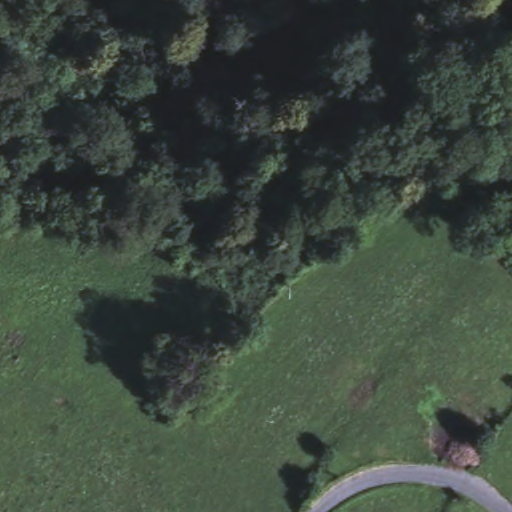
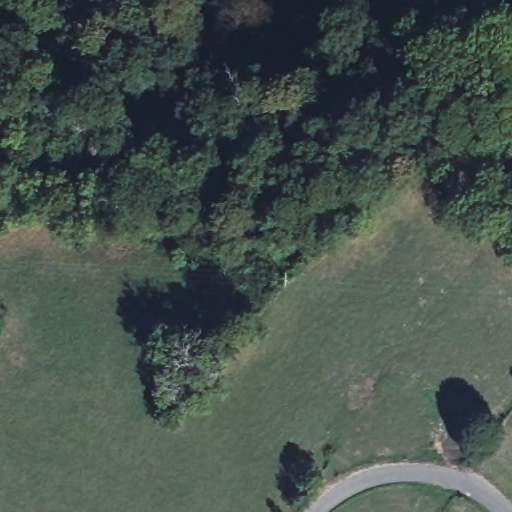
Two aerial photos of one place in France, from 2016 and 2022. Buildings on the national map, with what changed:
[]

